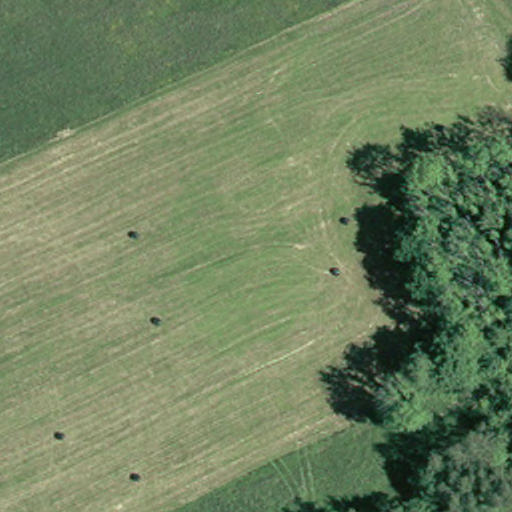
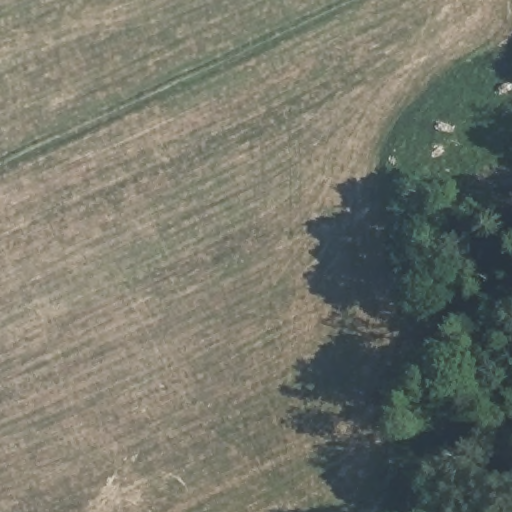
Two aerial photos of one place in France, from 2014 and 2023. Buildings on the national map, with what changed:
[]

